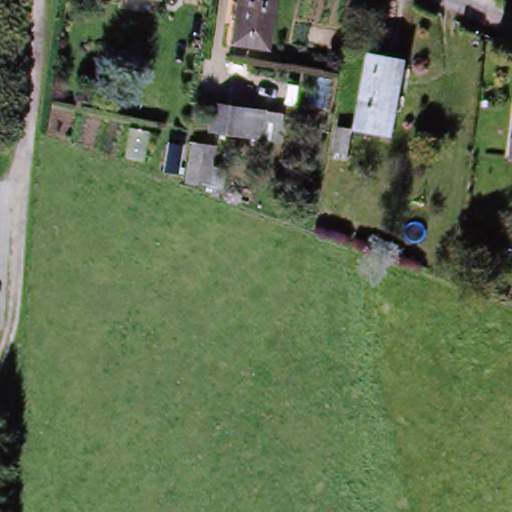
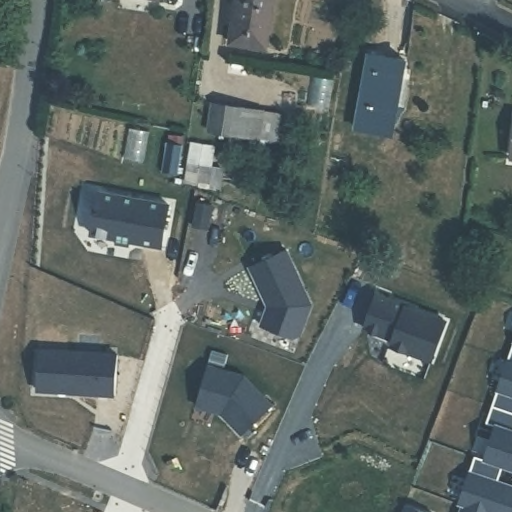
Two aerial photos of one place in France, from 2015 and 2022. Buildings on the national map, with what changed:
unchanged [(265,45),(231,38),(238,0),(273,0),(265,45)]
unchanged [(361,105),(369,52),(403,58),(395,111),(392,134),(357,129),(361,105)]
unchanged [(208,129),(213,101),(284,115),(279,143),(208,129)]
unchanged [(215,145),(209,174),(226,174),(222,192),(181,181),(186,144),(215,145)]
unchanged [(511,160),(512,144),(512,161),(511,160)]
unchanged [(162,150),(177,153),(172,180),(158,176),(162,150)]
new [(168,200),(161,242),(89,229),(98,187),(168,200)]
new [(129,236),(128,240),(114,237),(115,234),(129,236)]
new [(286,248),(311,302),(301,332),(294,335),(261,323),(268,305),(271,304),(269,298),(265,297),(251,265),(286,248)]
new [(407,302),(405,306),(416,310),(417,307),(446,318),(431,357),(390,342),(393,336),(364,325),(376,291),(407,302)]
new [(114,391),(73,388),(73,387),(64,386),(64,388),(35,386),(38,346),(116,351),(114,391)]
new [(504,465),(498,481),(512,486),(512,512),(461,512),(464,505),(459,503),(476,456),(485,459),(497,425),(488,422),(512,352),(512,468),(504,465)]
new [(404,512),(406,505),(426,512),(404,512)]

